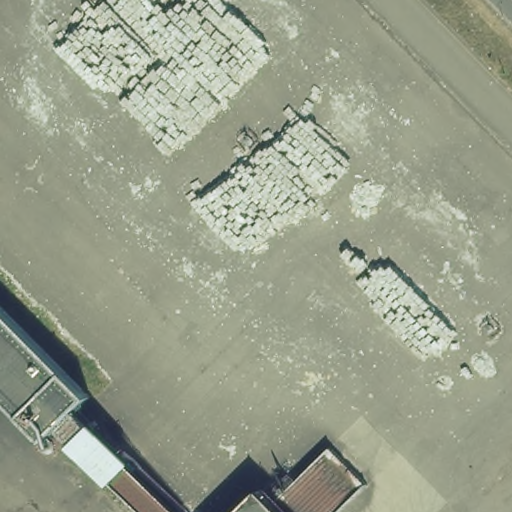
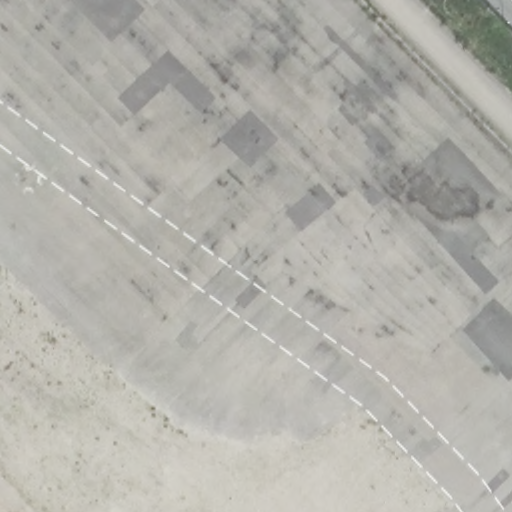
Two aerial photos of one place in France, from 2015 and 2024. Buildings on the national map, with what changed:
demolished [(90,409),(134,463),(176,512),(132,512),(107,484),(56,433),(30,456),(0,424),(0,301),(99,401),(90,409)]
new [(72,413),(89,431),(65,454),(48,437),(38,447),(0,408),(0,320),(82,403),(72,413)]
new [(123,512),(65,454),(89,431),(171,512),(123,512)]
demolished [(277,503),(336,447),(374,484),(347,512),(241,512),(264,491),(277,503)]
new [(367,486),(340,512),(282,512),(273,503),(329,448),(367,486)]
new [(282,512),(237,512),(259,490),(273,503),(282,512)]

